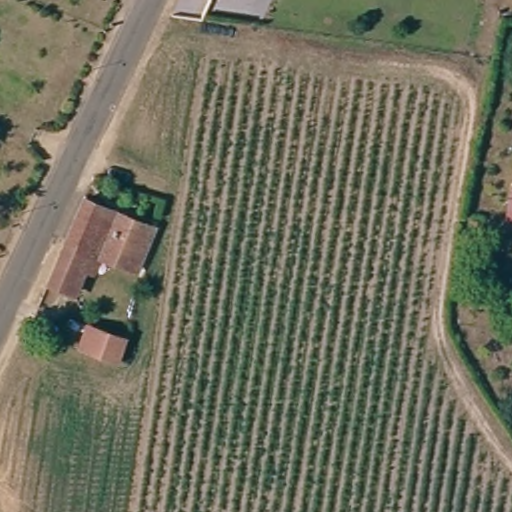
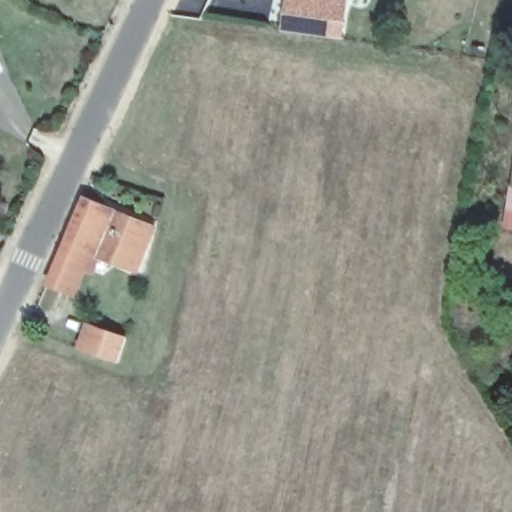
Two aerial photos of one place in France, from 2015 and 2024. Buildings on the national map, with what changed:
new [(283,0),(347,0),(342,39),(279,30),(283,0)]
unchanged [(90,268),(78,292),(49,277),(86,199),(146,227),(126,268),(111,261),(103,276),(90,268)]
unchanged [(512,205),(512,232),(508,231),(512,205)]
unchanged [(80,326),(124,332),(119,357),(76,348),(80,326)]

